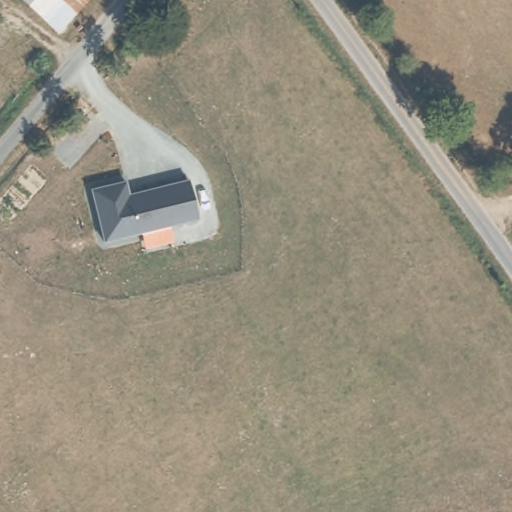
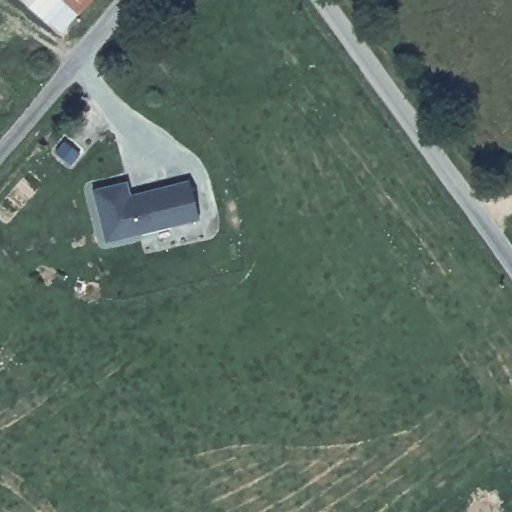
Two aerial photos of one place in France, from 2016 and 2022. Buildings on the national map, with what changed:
unchanged [(91,0),(61,34),(26,0),(91,0)]
unchanged [(106,242),(92,188),(127,182),(130,196),(191,183),(199,219),(106,242)]

